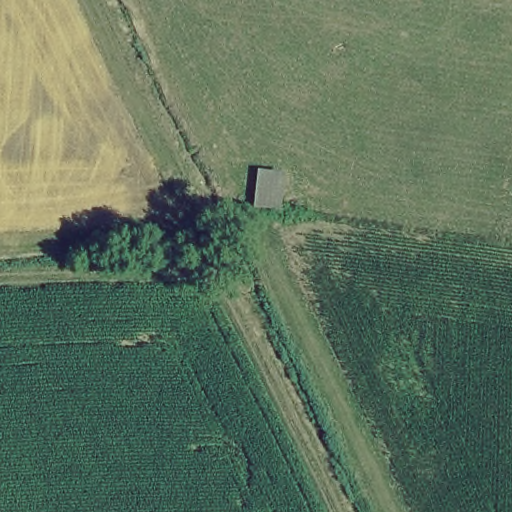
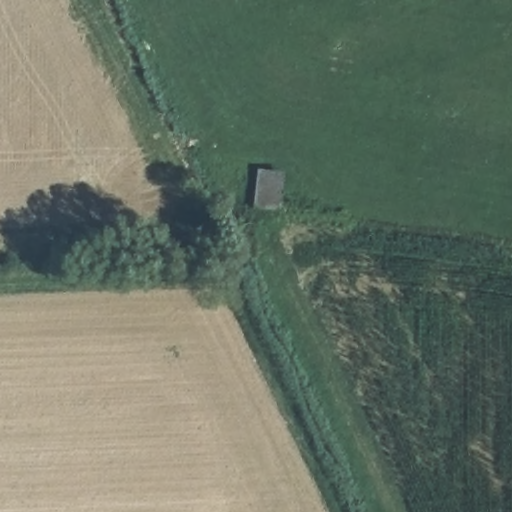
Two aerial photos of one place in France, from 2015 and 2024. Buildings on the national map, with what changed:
unchanged [(281,217),(254,214),(257,170),(286,172),(281,217)]

